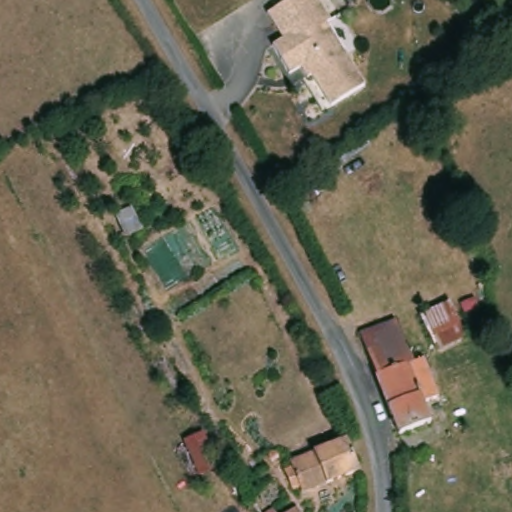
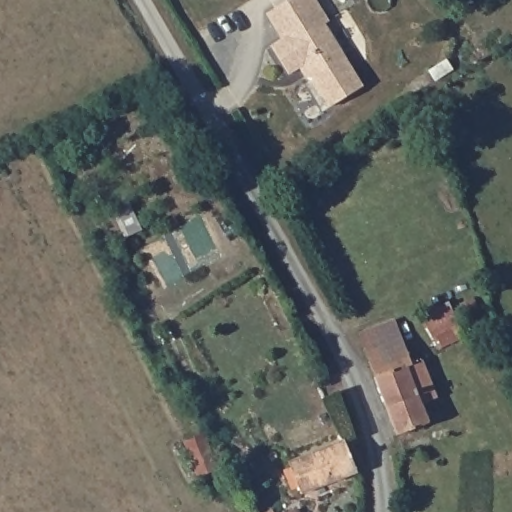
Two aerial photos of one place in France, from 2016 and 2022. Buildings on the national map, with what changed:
unchanged [(292,71),(275,43),(286,36),(270,10),(287,0),(320,0),(332,18),(328,21),(348,53),(367,83),(334,104),(314,73),(310,75),(303,64),(292,71)]
unchanged [(450,304),(466,337),(437,346),(423,316),(450,304)]
unchanged [(437,399),(421,406),(428,425),(396,437),(359,336),(395,323),(409,360),(411,366),(411,367),(423,364),(437,399)]
unchanged [(220,492),(199,450),(223,437),(244,476),(220,492)]
unchanged [(343,445),(355,478),(299,498),(287,465),(343,445)]

